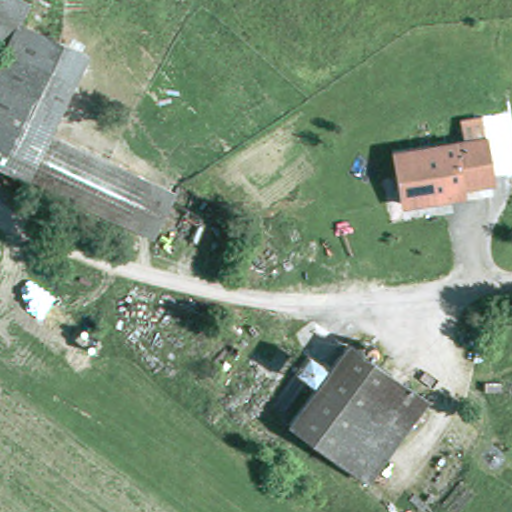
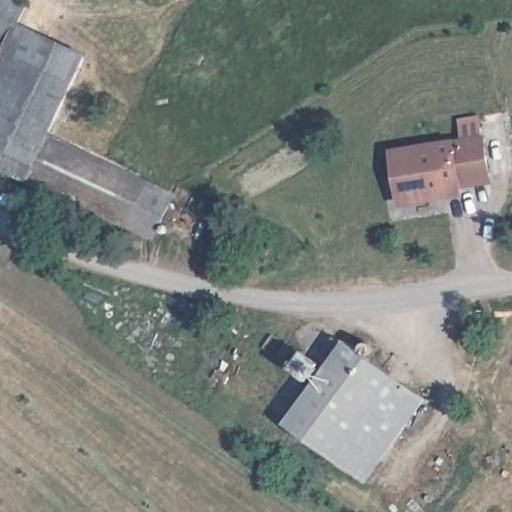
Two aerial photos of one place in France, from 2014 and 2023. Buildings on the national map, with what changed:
unchanged [(87,52),(49,132),(175,192),(157,234),(0,160),(0,61),(7,46),(0,43),(0,0),(25,0),(27,1),(19,19),(87,52)]
unchanged [(482,140),(489,175),(473,178),(474,185),(451,189),(452,194),(402,201),(395,154),(482,140)]
unchanged [(349,344),(425,397),(367,478),(289,424),(349,344)]

